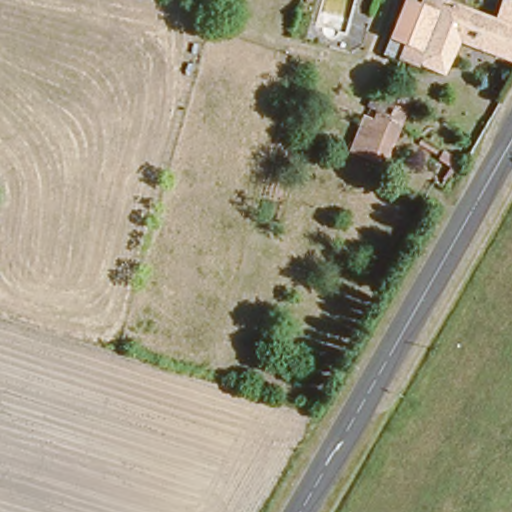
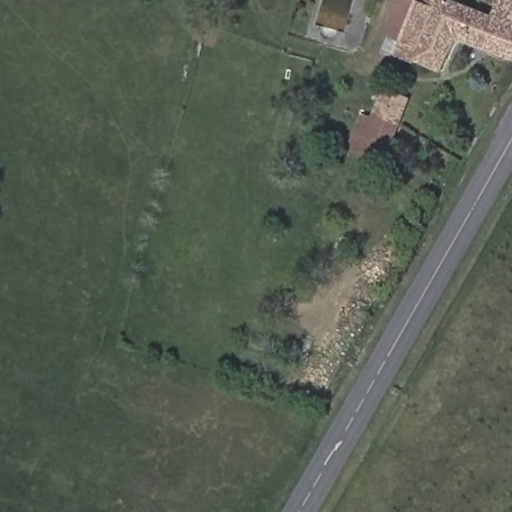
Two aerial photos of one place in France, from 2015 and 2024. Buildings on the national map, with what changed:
unchanged [(404,50),(403,52),(386,44),(405,0),(457,0),(495,17),(504,1),(512,5),(512,63),(458,38),(443,70),(421,59),(404,50)]
unchanged [(413,93),(387,164),(343,148),(375,77),(413,93)]

